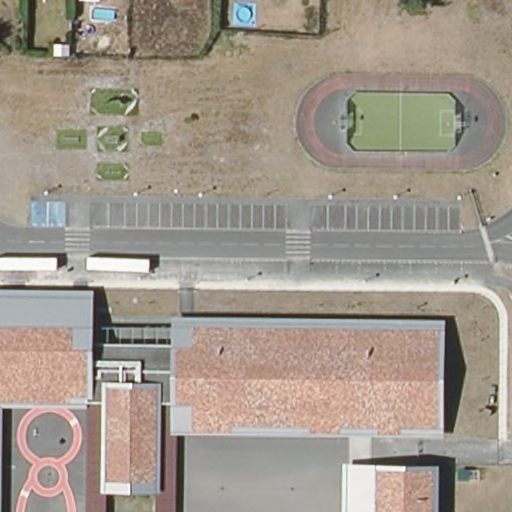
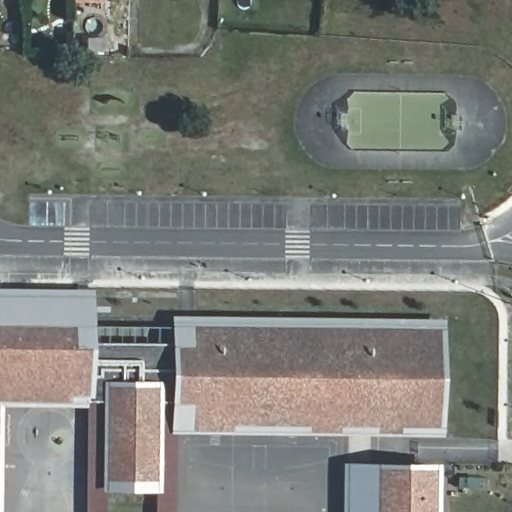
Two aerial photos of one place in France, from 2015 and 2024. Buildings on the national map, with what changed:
unchanged [(95,291),(94,342),(172,342),(173,316),(447,320),(444,437),(170,435),(170,407),(161,406),(161,493),(101,493),(102,406),(2,408),(1,512),(0,512),(0,290),(95,291)]
unchanged [(437,465),(437,512),(343,512),(344,465),(377,465),(437,465)]

